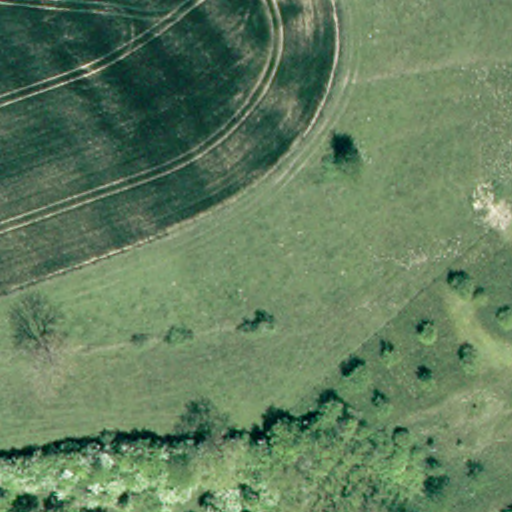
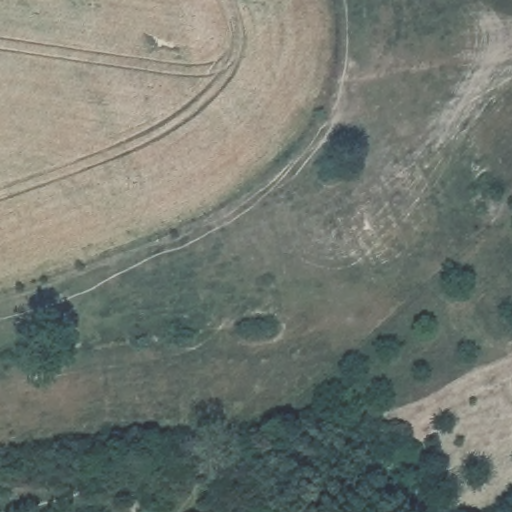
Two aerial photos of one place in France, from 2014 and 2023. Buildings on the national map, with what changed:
[]

